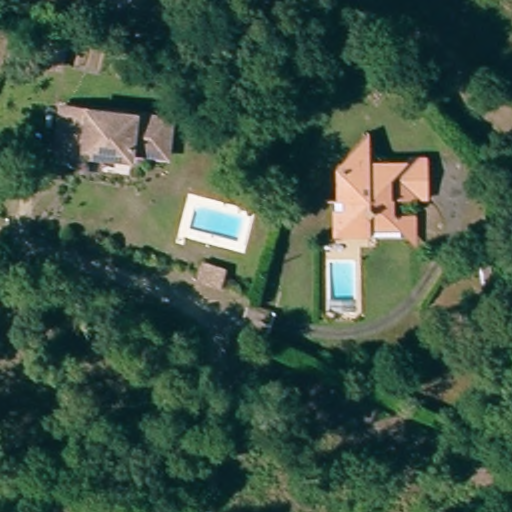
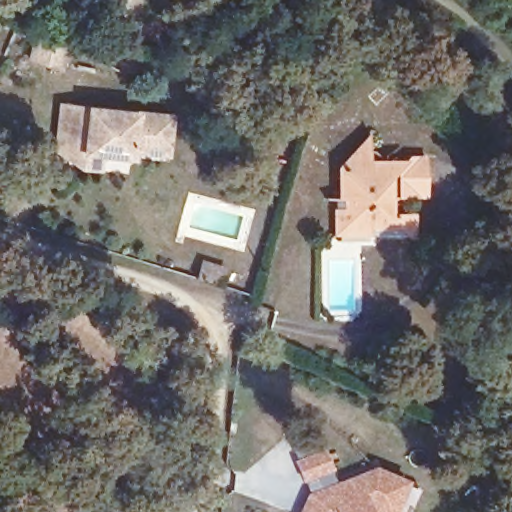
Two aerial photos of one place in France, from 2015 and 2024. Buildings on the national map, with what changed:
unchanged [(47,34),(61,38),(56,59),(35,54),(40,32),(47,34)]
unchanged [(91,171),(67,153),(71,108),(181,120),(177,158),(142,154),(141,161),(111,158),(109,173),(91,171)]
unchanged [(358,232),(325,232),(324,200),(329,200),(328,174),(347,154),(364,154),(382,173),(401,157),(417,156),(416,197),(379,198),(378,213),(387,214),(387,224),(398,224),(402,229),(395,237),(386,226),(358,227),(358,232)]
demolished [(263,246),(258,266),(243,261),(249,242),(263,246)]
unchanged [(218,265),(213,284),(198,280),(204,261),(218,265)]
new [(306,493),(293,461),(324,448),(336,480),(375,465),(408,480),(394,512),(376,512),(369,509),(361,512),(299,512),(306,493)]

